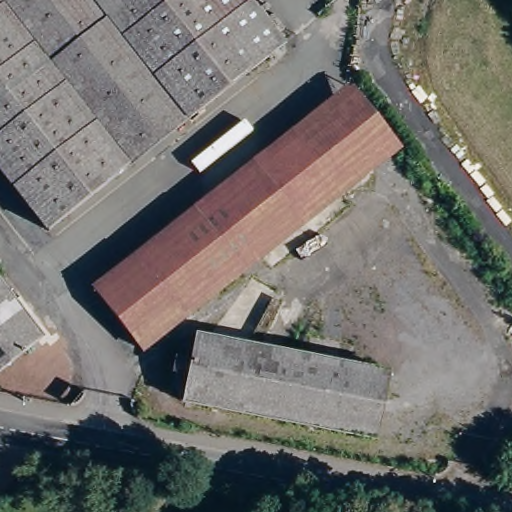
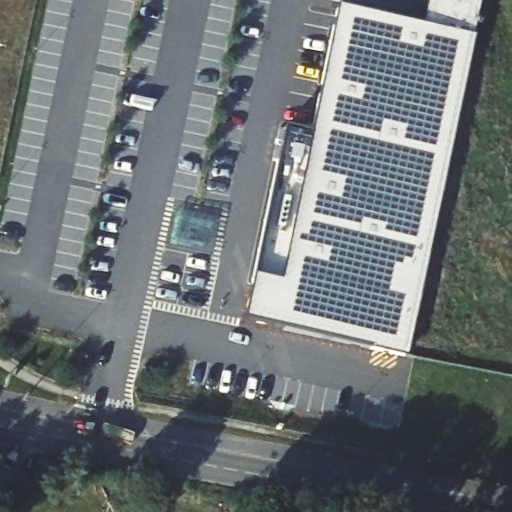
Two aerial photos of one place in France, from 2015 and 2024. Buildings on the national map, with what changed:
demolished [(125,166),(107,180),(103,183),(41,231),(0,179),(0,0),(246,0),(280,44),(244,73),(223,90),(125,166)]
new [(313,131),(339,5),(425,23),(429,0),(479,0),(408,357),(246,317),(248,310),(285,124),(313,131)]
demolished [(298,222),(137,349),(90,288),(250,162),(298,222)]
demolished [(0,366),(0,289),(37,337),(0,366)]
demolished [(372,438),(178,399),(166,385),(174,345),(192,334),(386,372),(372,438)]
demolished [(512,445),(512,452),(509,450),(512,445)]

